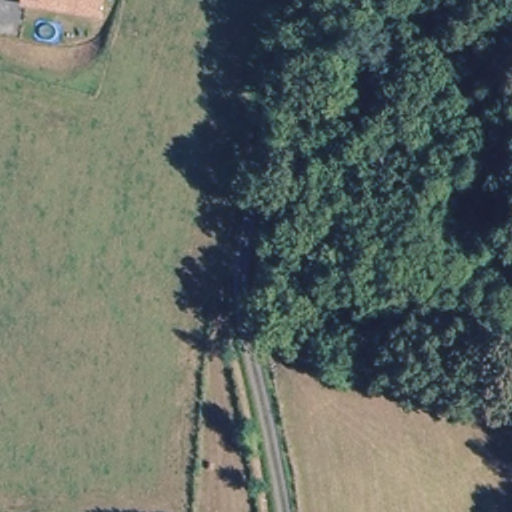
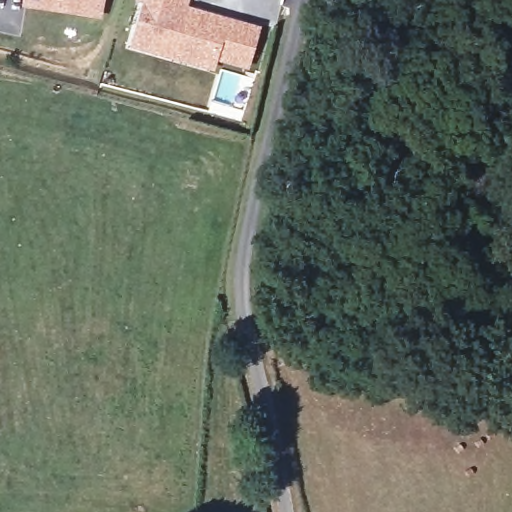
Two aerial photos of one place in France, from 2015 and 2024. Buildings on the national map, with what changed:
unchanged [(21,8),(23,0),(105,0),(103,19),(21,8)]
new [(215,71),(129,47),(141,3),(134,1),(134,0),(190,0),(188,5),(262,27),(250,70),(218,61),(215,71)]

